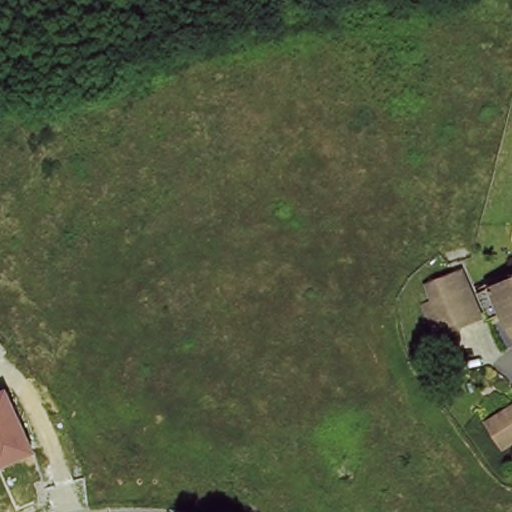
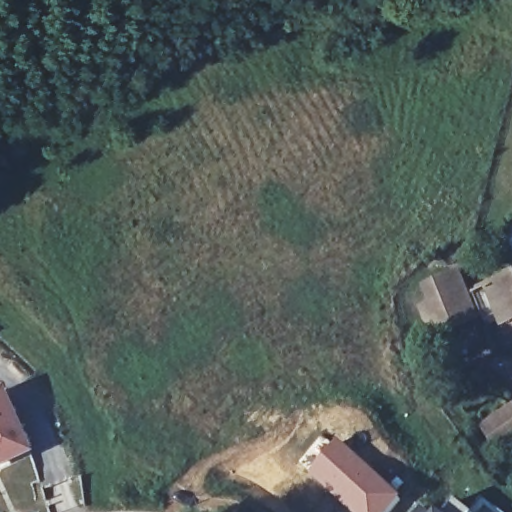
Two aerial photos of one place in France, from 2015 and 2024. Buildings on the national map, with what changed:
unchanged [(424,308),(437,304),(432,288),(467,277),(470,284),(475,299),(481,319),(432,335),(426,316),(424,308)]
unchanged [(499,322),(488,325),(478,297),(512,285),(512,339),(507,341),(499,322)]
unchanged [(8,388),(36,454),(0,467),(0,392),(8,388)]
unchanged [(483,429),(512,412),(512,445),(497,453),(483,429)]
new [(389,512),(356,512),(301,462),(323,439),(335,450),(340,446),(400,499),(389,512)]
new [(468,512),(443,512),(454,500),(468,512)]
new [(430,512),(418,512),(422,507),(430,512)]

